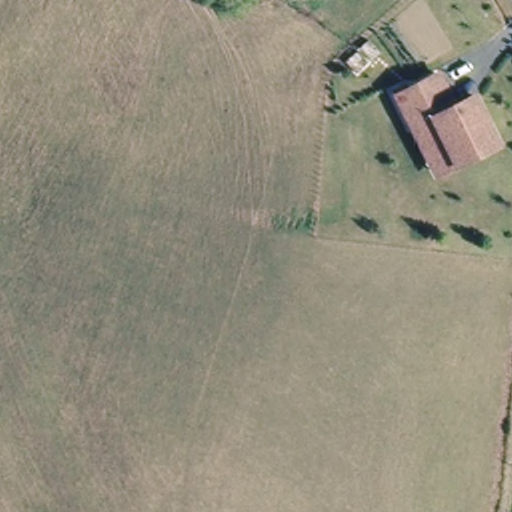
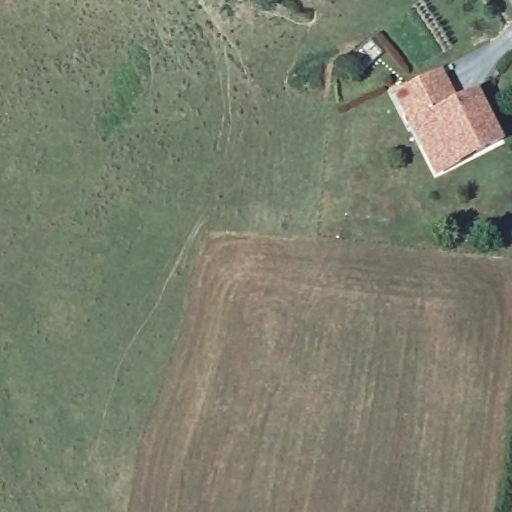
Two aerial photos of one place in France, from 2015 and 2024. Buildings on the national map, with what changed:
unchanged [(428,151),(403,102),(444,81),(461,112),(480,102),(503,147),(482,158),(441,177),(428,151)]

